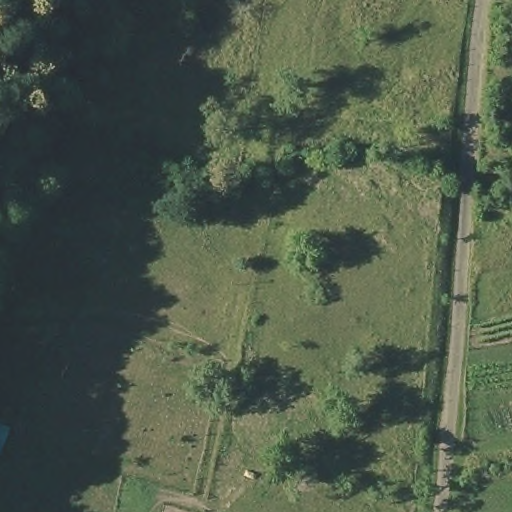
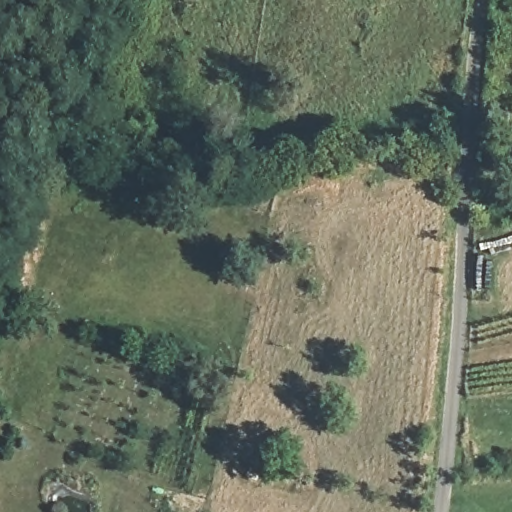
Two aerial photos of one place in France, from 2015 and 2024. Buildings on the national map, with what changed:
unchanged [(0,326),(3,318),(25,326),(14,353),(0,347),(0,326)]
unchanged [(0,420),(10,424),(1,452),(0,452),(0,420)]

